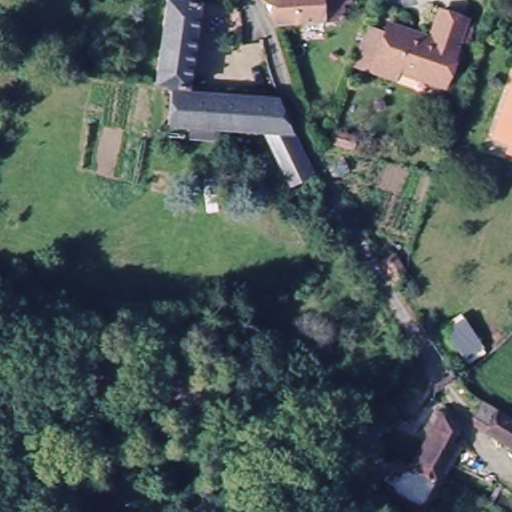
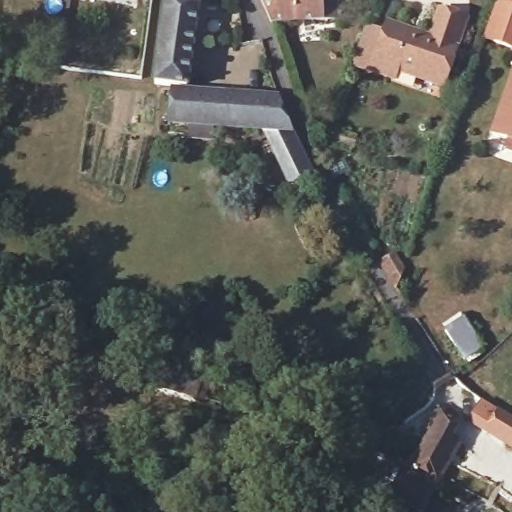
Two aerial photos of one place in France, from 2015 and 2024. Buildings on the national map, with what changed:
unchanged [(169,0),(187,0),(201,2),(190,86),(173,83),(157,81),(169,0)]
unchanged [(327,24),(274,27),(267,12),(261,0),(326,0),(327,24)]
unchanged [(345,22),(327,24),(326,0),(344,0),(345,22)]
new [(512,43),(487,34),(499,0),(512,5),(512,43)]
unchanged [(370,29),(388,36),(392,27),(430,41),(444,5),(473,16),(444,89),(399,72),(396,80),(356,64),(370,29)]
unchanged [(512,145),(495,139),(512,88),(512,145)]
unchanged [(170,125),(172,90),(279,97),(314,174),(291,183),(276,151),(268,132),(170,125)]
unchanged [(349,136),(344,147),(332,142),(326,139),(331,127),(349,136)]
unchanged [(394,252),(405,245),(410,251),(404,267),(396,288),(389,277),(379,261),(394,252)]
unchanged [(466,317),(485,347),(463,361),(444,330),(466,317)]
unchanged [(147,365),(160,368),(162,364),(189,372),(189,376),(228,389),(222,411),(142,387),(147,365)]
unchanged [(473,426),(481,402),(501,414),(512,420),(512,448),(489,434),(473,426)]
unchanged [(411,451),(431,414),(459,432),(452,444),(460,450),(451,466),(443,482),(426,512),(420,512),(387,493),(386,493),(402,467),(411,451)]

